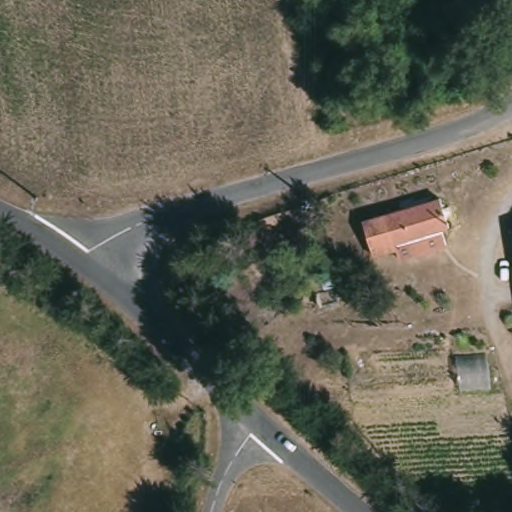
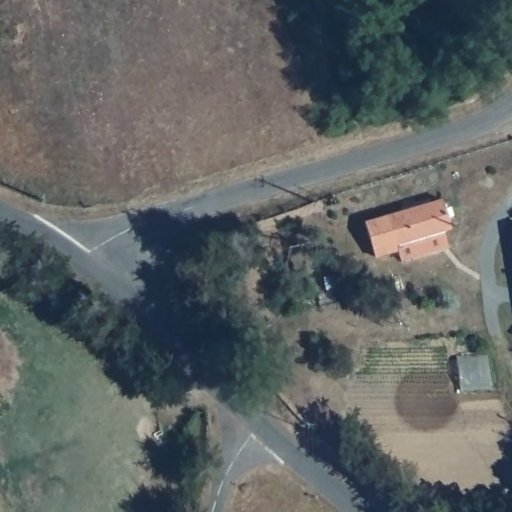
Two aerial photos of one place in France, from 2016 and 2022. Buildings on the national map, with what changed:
unchanged [(361,221),(397,209),(398,212),(428,202),(427,199),(436,196),(446,225),(439,227),(444,242),(397,257),(394,248),(372,256),(361,221)]

